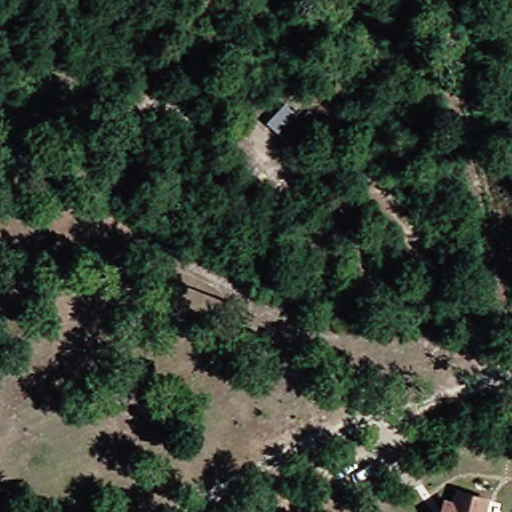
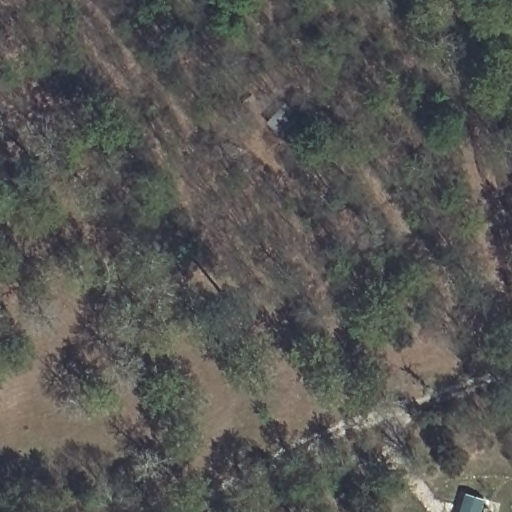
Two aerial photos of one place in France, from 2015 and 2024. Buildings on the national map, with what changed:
unchanged [(287,103),(308,122),(291,142),(268,124),(287,103)]
unchanged [(460,498),(467,501),(487,506),(485,512),(457,512),(460,498)]

